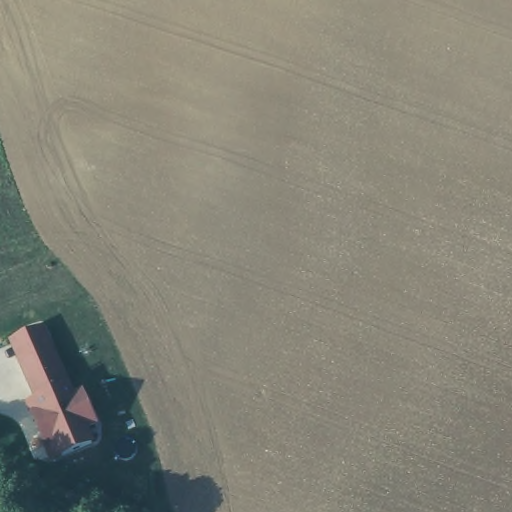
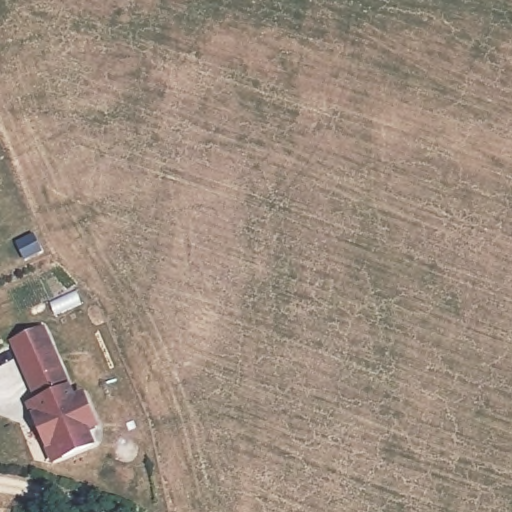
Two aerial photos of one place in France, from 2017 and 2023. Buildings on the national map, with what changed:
unchanged [(54,463),(27,402),(35,397),(12,341),(47,326),(77,397),(85,393),(100,428),(90,432),(96,447),(54,463)]

